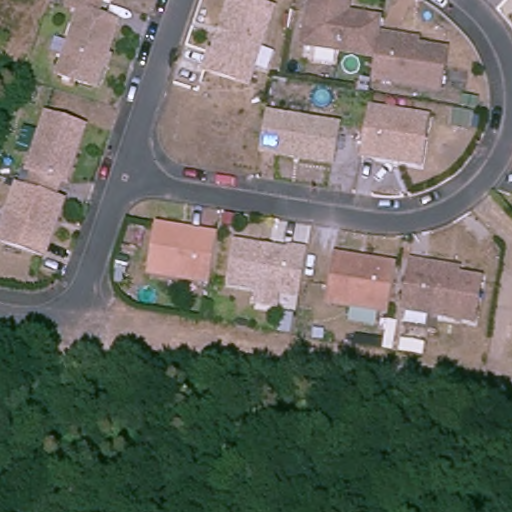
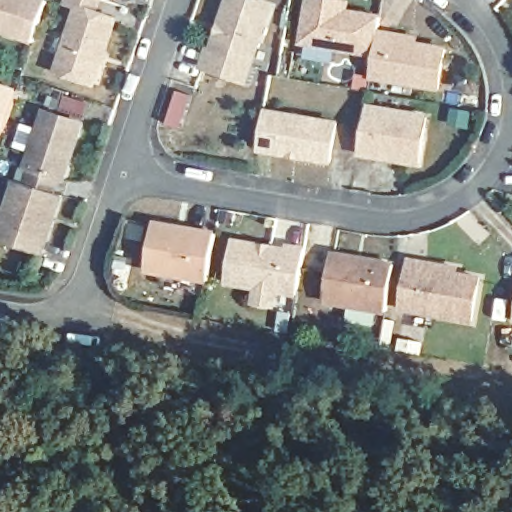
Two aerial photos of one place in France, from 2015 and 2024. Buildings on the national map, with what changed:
new [(0,0),(47,0),(33,43),(0,32),(0,0)]
unchanged [(51,65),(74,2),(68,0),(93,0),(91,7),(111,14),(92,69),(89,78),(80,75),(51,65)]
unchanged [(246,83),(203,68),(204,65),(209,50),(213,51),(230,0),(250,0),(272,8),(250,73),(246,83)]
unchanged [(316,0),(348,5),(346,14),(356,15),(381,19),(379,34),(378,43),(375,58),(302,45),(310,0),(316,0)]
unchanged [(417,41),(416,47),(446,52),(440,91),(371,79),(373,73),(375,58),(378,43),(379,34),(395,37),(417,41)]
new [(0,138),(0,82),(18,88),(0,138)]
unchanged [(56,172),(50,170),(45,185),(36,182),(20,177),(25,161),(19,159),(38,104),(75,117),(65,146),(62,155),(56,172)]
unchanged [(426,119),(418,166),(358,156),(361,138),(366,109),(426,119)]
unchanged [(336,125),(330,164),(258,151),(265,113),(336,125)]
unchanged [(36,182),(45,185),(54,188),(34,246),(0,234),(0,199),(9,173),(20,177),(36,182)]
unchanged [(212,233),(209,254),(204,279),(145,269),(152,222),(212,233)]
unchanged [(245,295),(248,282),(218,276),(225,234),(279,244),(280,240),(296,243),(289,289),(288,289),(267,284),(265,299),(245,295)]
unchanged [(383,309),(382,311),(322,300),(330,254),(390,265),(391,265),(383,309)]
unchanged [(468,323),(398,309),(407,260),(424,263),(454,269),(452,275),(476,279),(468,323)]

